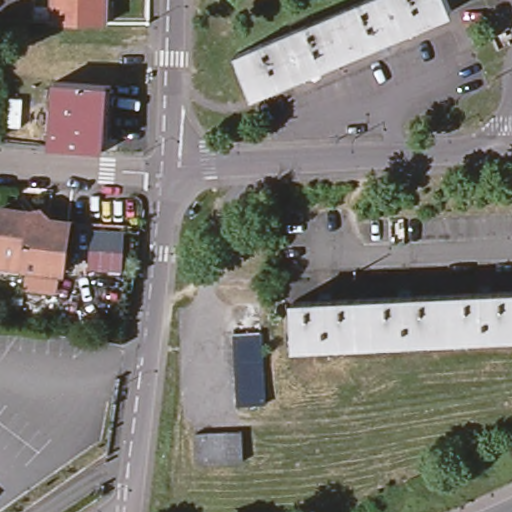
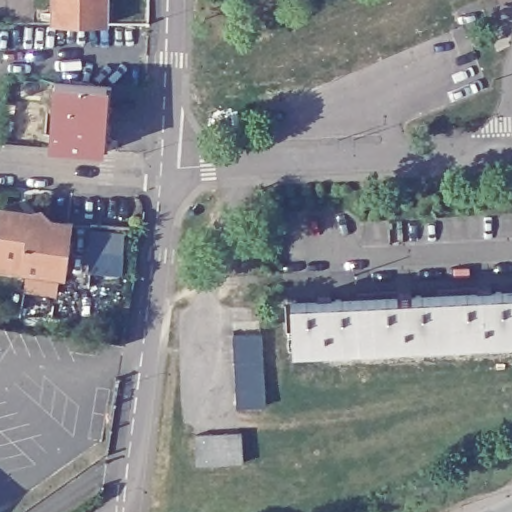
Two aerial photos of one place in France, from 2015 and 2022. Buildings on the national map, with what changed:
unchanged [(108,21),(53,20),(53,0),(108,0),(108,21)]
demolished [(452,9),(251,91),(234,52),(361,0),(448,0),(452,9)]
unchanged [(499,2),(498,0),(505,0),(499,2)]
unchanged [(108,85),(103,148),(53,145),(57,83),(108,85)]
unchanged [(0,238),(4,206),(28,210),(33,215),(33,219),(50,222),(51,218),(71,221),(63,271),(25,265),(24,272),(0,269),(0,238)]
unchanged [(512,293),(512,337),(294,345),(293,302),(512,293)]
unchanged [(259,312),(266,397),(238,400),(231,315),(259,312)]
unchanged [(243,431),(246,459),(188,465),(186,436),(243,431)]

